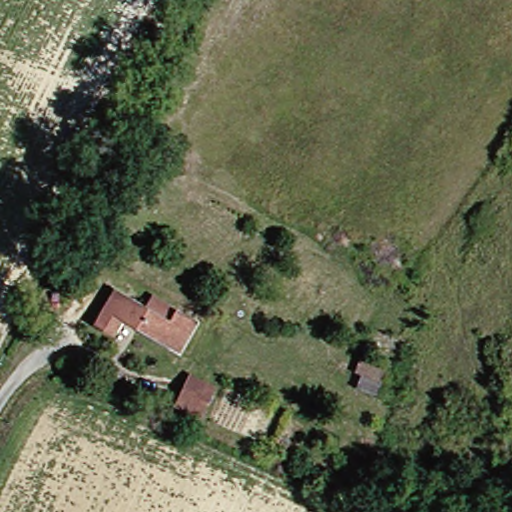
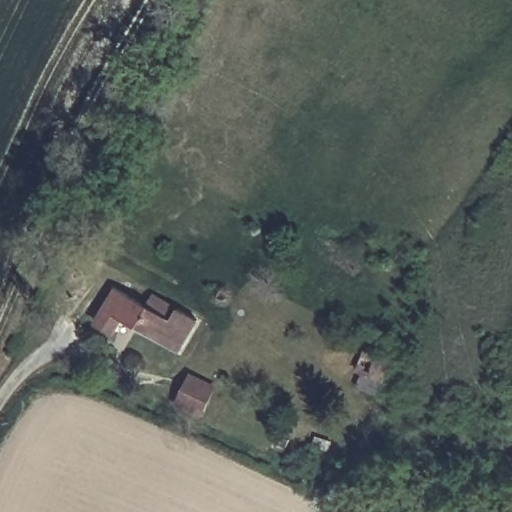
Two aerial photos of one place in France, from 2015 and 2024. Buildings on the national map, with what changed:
unchanged [(122,289),(151,305),(159,292),(200,315),(185,346),(130,319),(119,335),(101,323),(122,289)]
unchanged [(393,375),(382,370),(368,363),(380,343),(384,345),(402,355),(393,375)]
unchanged [(220,404),(211,422),(184,409),(194,390),(220,404)]

